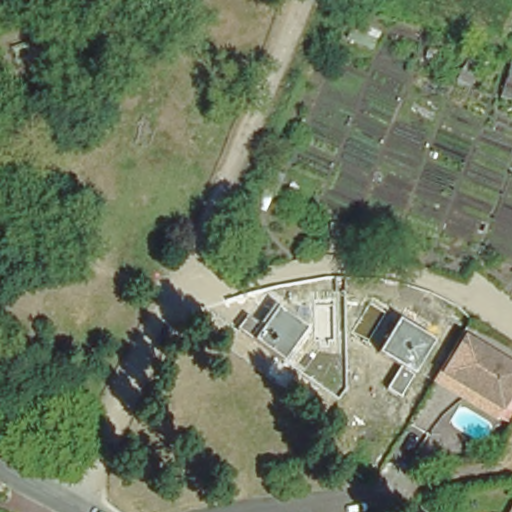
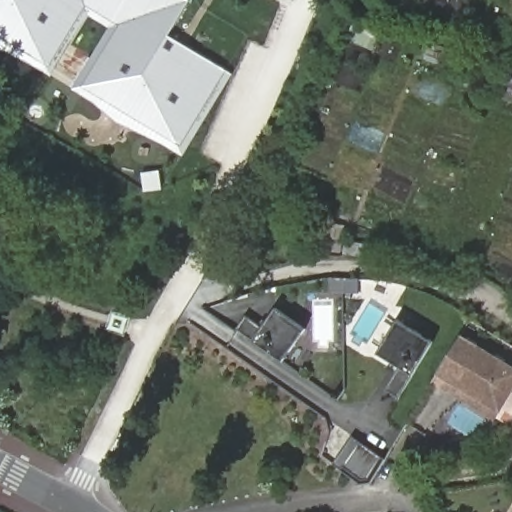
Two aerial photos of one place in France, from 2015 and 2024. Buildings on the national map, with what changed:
new [(231,72),(183,153),(71,86),(109,27),(87,15),(51,72),(0,41),(0,0),(189,0),(169,35),(231,72)]
unchanged [(496,99),(510,62),(512,62),(512,104),(496,99)]
new [(281,360),(254,342),(236,330),(246,315),(263,326),(274,308),(305,329),(281,360)]
new [(413,374),(400,398),(385,390),(397,366),(375,353),(396,318),(432,340),(413,374)]
unchanged [(501,418),(441,381),(468,337),(472,339),(452,373),(508,407),(501,418)]
unchanged [(472,339),(512,364),(512,401),(508,407),(452,373),(472,339)]
new [(370,482),(359,483),(333,464),(353,436),(383,458),(370,482)]

